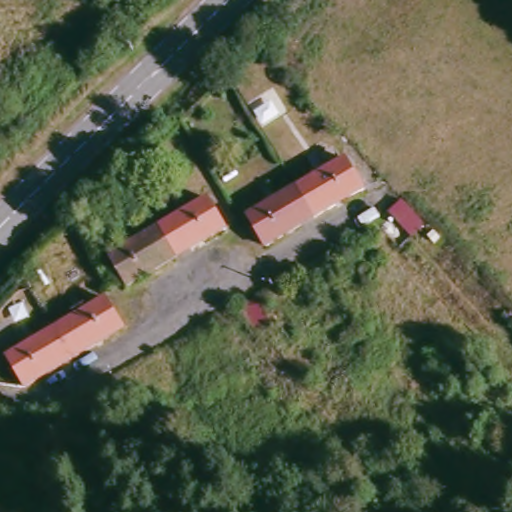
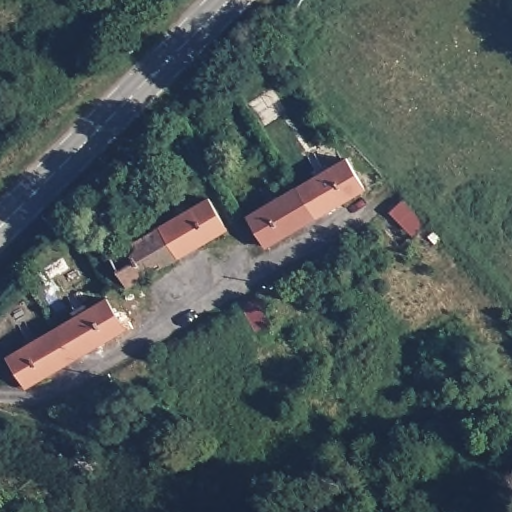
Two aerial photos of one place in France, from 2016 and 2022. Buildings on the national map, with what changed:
unchanged [(351,160),(372,197),(319,226),(298,191),(351,160)]
unchanged [(319,226),(272,252),(252,217),(298,191),(319,226)]
unchanged [(211,200),(230,230),(178,259),(160,229),(211,200)]
unchanged [(452,233),(439,246),(416,222),(430,210),(452,233)]
unchanged [(178,259),(130,286),(112,255),(160,229),(178,259)]
unchanged [(114,300),(133,334),(80,363),(59,331),(114,300)]
unchanged [(80,363),(30,391),(10,358),(59,331),(80,363)]

